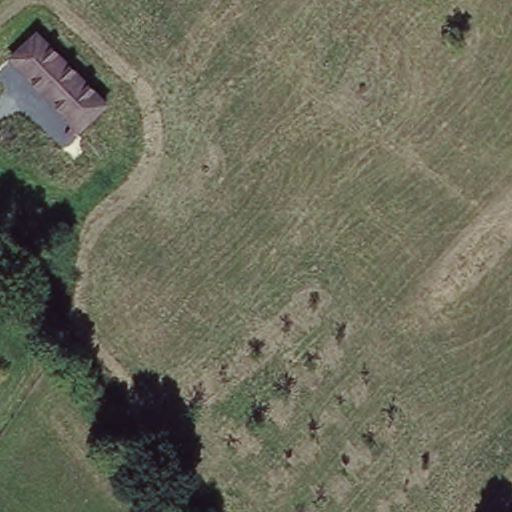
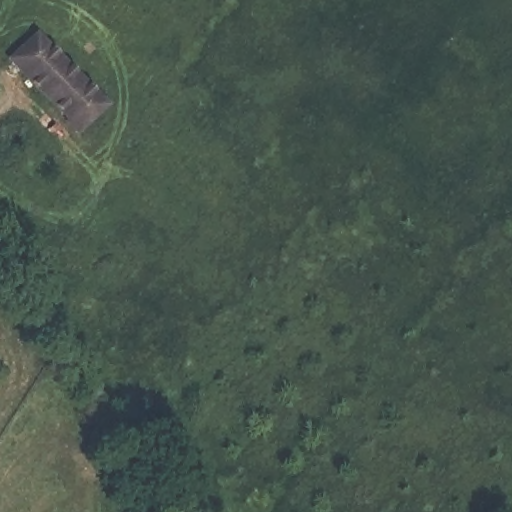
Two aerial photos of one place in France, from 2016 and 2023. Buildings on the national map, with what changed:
unchanged [(37,31),(108,111),(80,135),(9,58),(37,31)]

